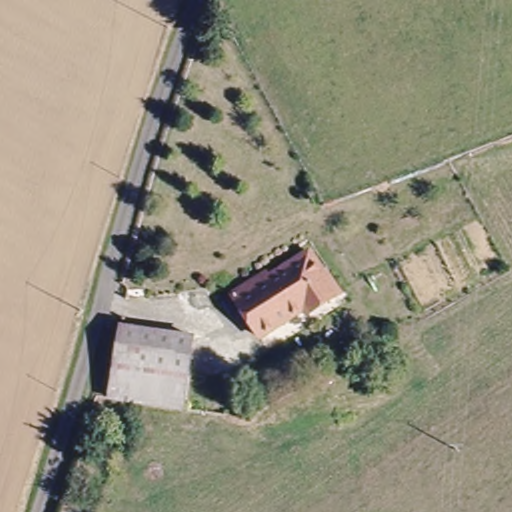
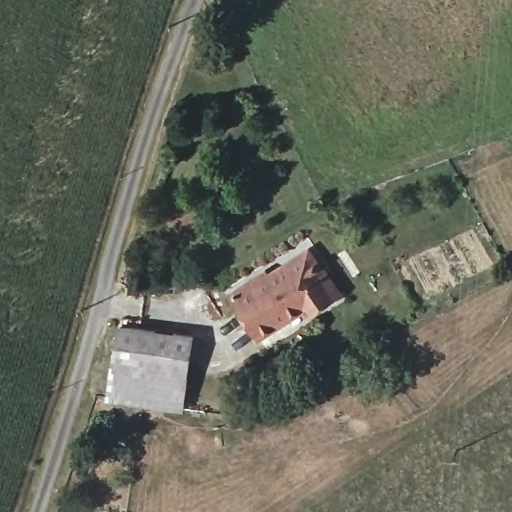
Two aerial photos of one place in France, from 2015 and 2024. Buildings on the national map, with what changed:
unchanged [(261,281),(302,254),(330,298),(299,318),(297,314),(253,343),(224,299),(258,277),(261,281)]
unchanged [(184,341),(173,413),(99,403),(110,330),(184,341)]

